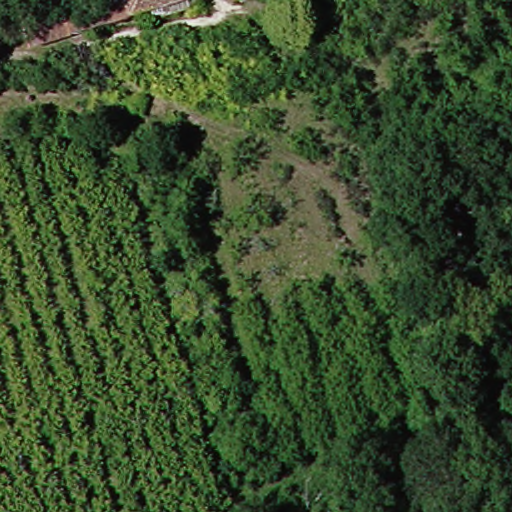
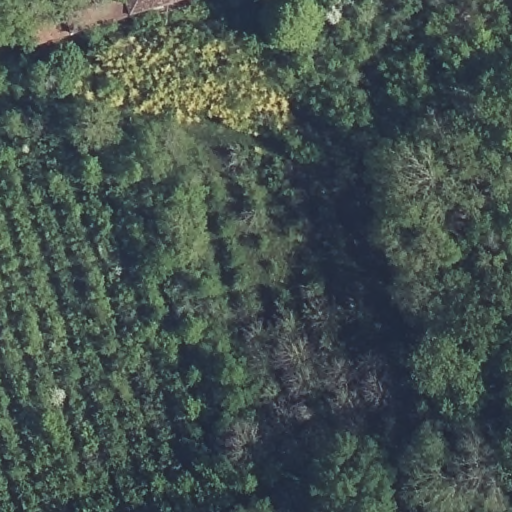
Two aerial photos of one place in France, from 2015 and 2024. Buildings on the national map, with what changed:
unchanged [(22,9),(34,5),(50,0),(62,0),(74,35),(47,43),(35,46),(22,9)]
unchanged [(195,0),(74,35),(62,0),(195,0)]
unchanged [(242,0),(256,0),(243,4),(242,0)]

